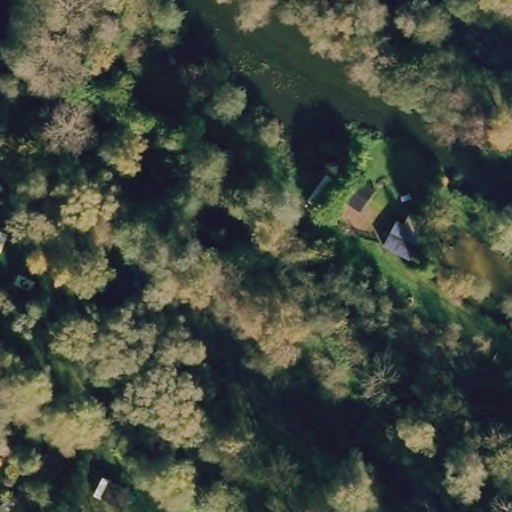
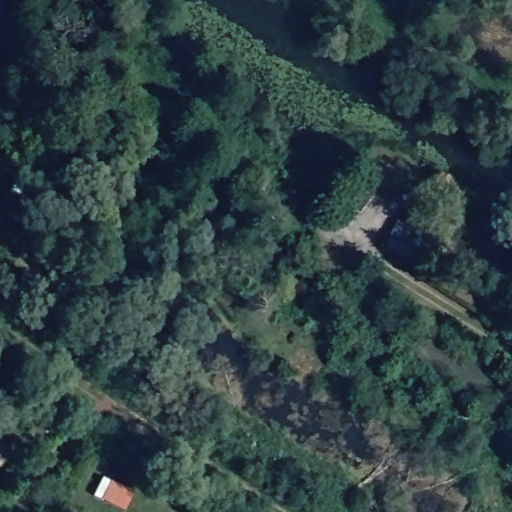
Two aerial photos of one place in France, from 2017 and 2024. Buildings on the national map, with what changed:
unchanged [(421,232),(408,263),(379,254),(395,221),(421,232)]

